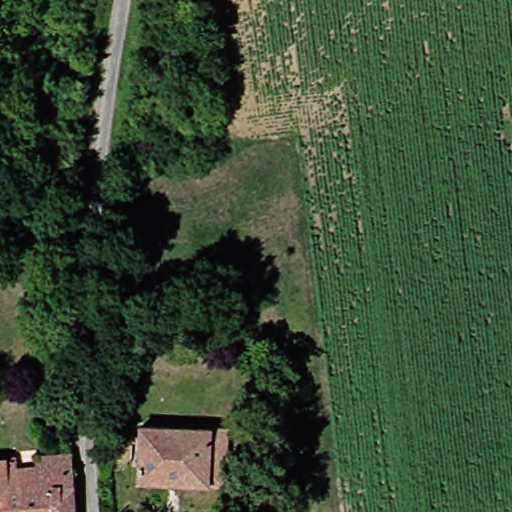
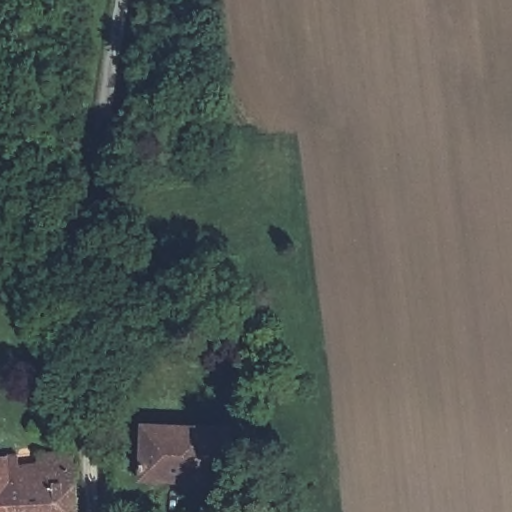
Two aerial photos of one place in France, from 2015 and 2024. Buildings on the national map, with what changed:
unchanged [(196,488),(125,479),(131,423),(218,433),(216,450),(211,490),(196,488)]
unchanged [(18,459),(67,457),(68,469),(71,512),(0,512),(0,460),(18,459)]

